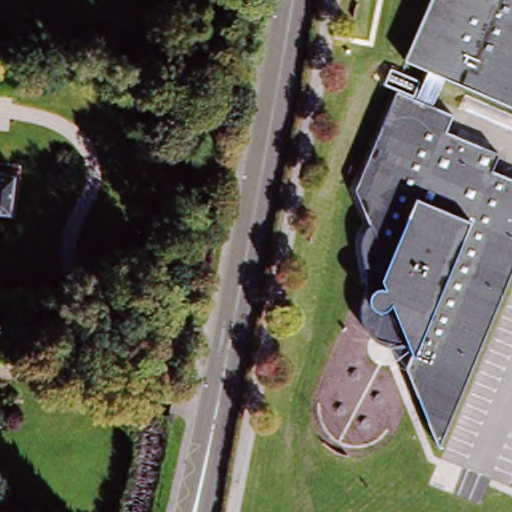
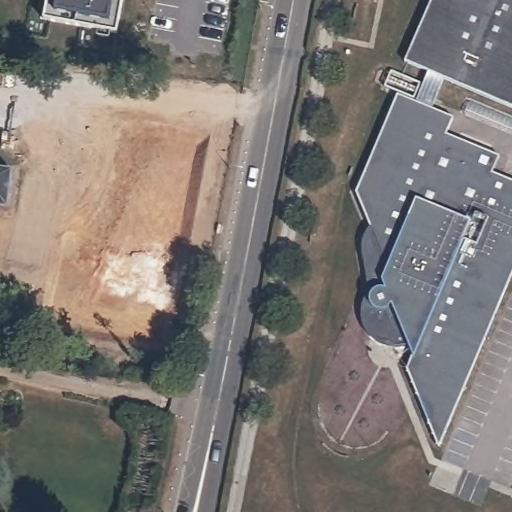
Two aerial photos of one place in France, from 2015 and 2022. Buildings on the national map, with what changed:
new [(113,34),(40,21),(44,0),(120,0),(113,34)]
unchanged [(403,55),(426,0),(512,0),(512,101),(403,55)]
unchanged [(386,92),(445,116),(438,132),(494,156),(487,172),(512,182),(512,266),(437,448),(401,371),(410,347),(402,350),(394,351),(383,350),(373,347),(365,345),(358,340),(353,334),(350,328),(349,319),(347,309),(347,302),(347,294),(350,287),(347,281),(345,275),(344,268),(345,260),(348,251),(352,241),(356,235),(361,227),(345,193),(386,92)]
unchanged [(0,169),(11,170),(7,211),(0,210),(0,169)]

